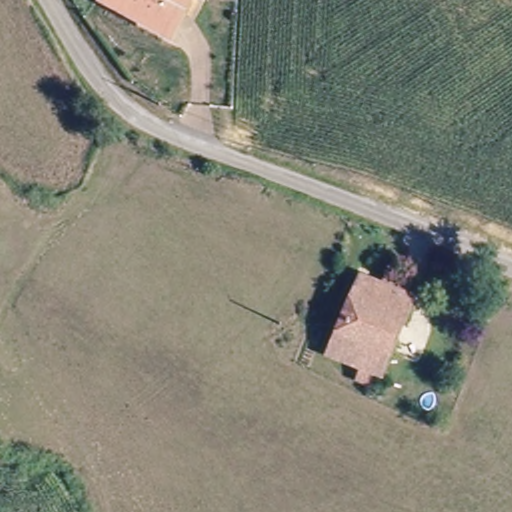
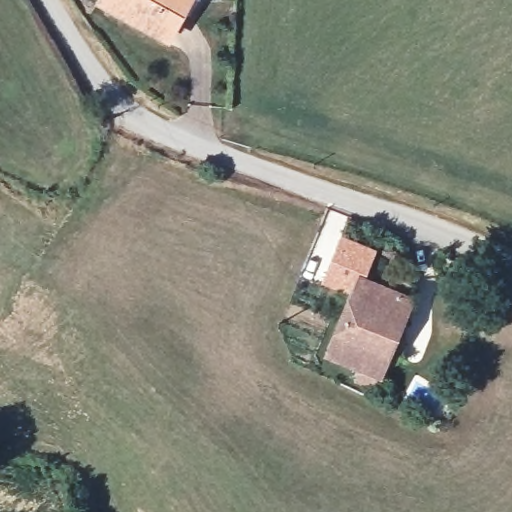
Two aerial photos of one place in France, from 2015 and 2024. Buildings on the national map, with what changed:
unchanged [(99,0),(193,0),(177,38),(99,0)]
new [(362,278),(356,295),(322,282),(342,235),(378,249),(366,280),(362,278)]
unchanged [(362,278),(412,299),(379,372),(331,352),(350,309),(362,278)]

